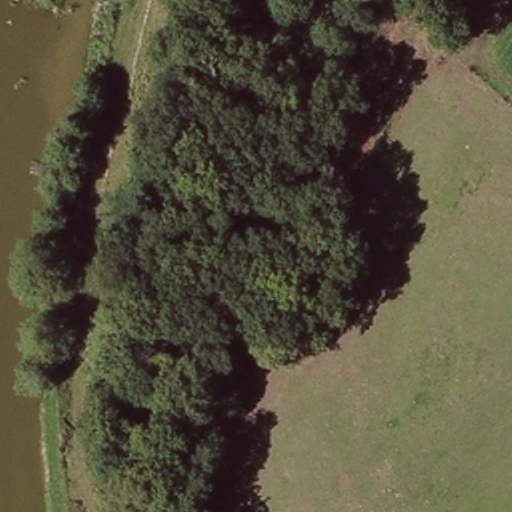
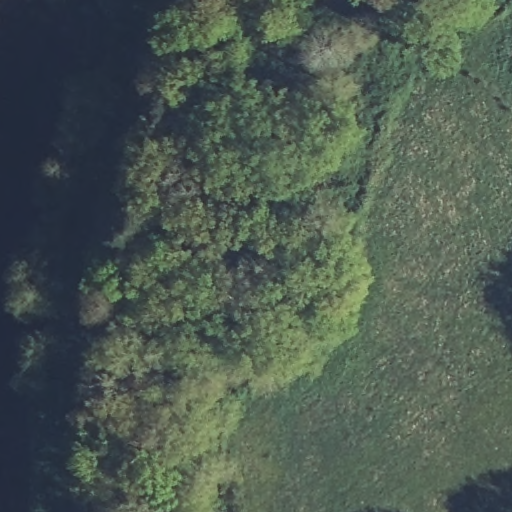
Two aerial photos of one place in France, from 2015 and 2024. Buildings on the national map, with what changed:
[]

